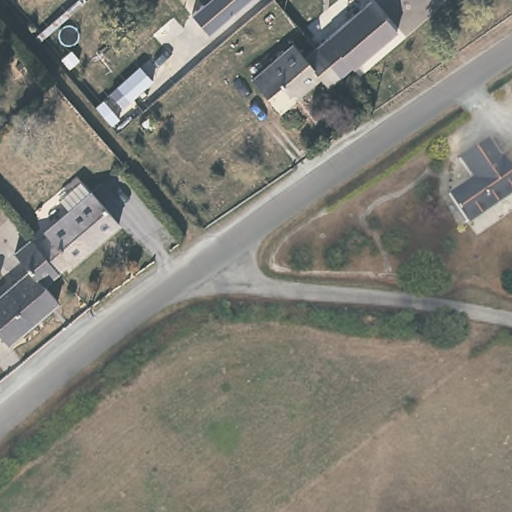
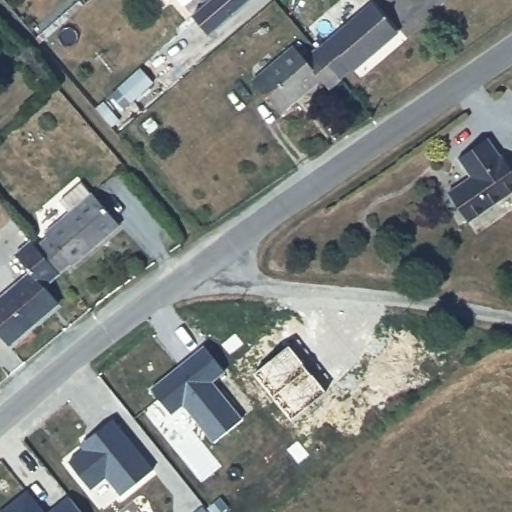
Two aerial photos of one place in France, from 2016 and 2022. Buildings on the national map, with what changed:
unchanged [(76,0),(78,0),(82,5),(39,42),(33,36),(76,0)]
unchanged [(196,0),(210,0),(202,7),(196,0)]
unchanged [(351,65),(337,77),(325,62),(312,47),(368,2),(396,37),(355,70),(351,65)]
unchanged [(325,86),(318,77),(275,112),(245,76),(290,41),(302,56),(312,47),(325,62),(337,77),(325,86)]
unchanged [(446,191),(469,175),(455,156),(484,136),(497,155),(502,153),(512,169),(512,187),(466,221),(446,191)]
unchanged [(476,235),(466,221),(512,187),(512,209),(476,235)]
unchanged [(49,235),(45,230),(92,190),(122,224),(76,265),(71,260),(57,271),(36,246),(49,235)]
unchanged [(6,346),(0,339),(0,298),(30,272),(13,251),(29,237),(36,246),(57,271),(42,285),(57,302),(6,346)]
new [(206,346),(227,372),(212,382),(242,419),(214,441),(186,402),(171,413),(152,388),(206,346)]
new [(112,418),(154,470),(121,496),(107,477),(91,490),(67,461),(83,448),(81,445),(112,418)]
new [(0,512),(27,488),(46,512),(0,512)]
new [(68,495),(82,512),(46,512),(68,495)]

